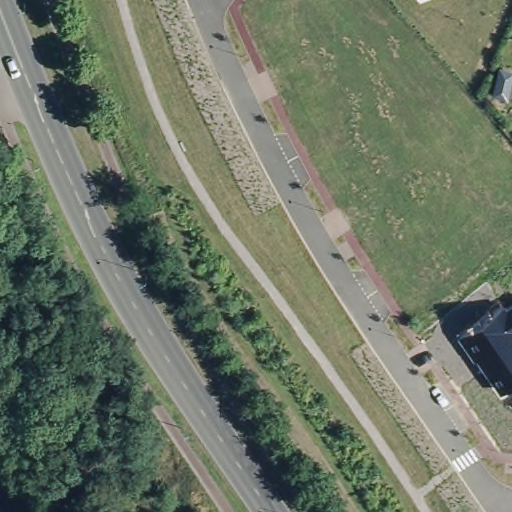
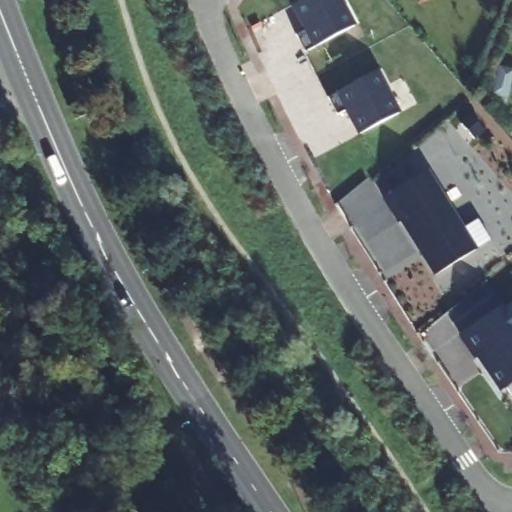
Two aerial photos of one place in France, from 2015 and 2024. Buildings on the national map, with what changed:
new [(290,7),(303,0),(341,0),(355,24),(306,51),(297,35),(302,32),(290,7)]
new [(345,110),(337,114),(329,97),(336,94),(377,71),(400,112),(357,134),(345,110)]
new [(426,171),(476,250),(435,275),(402,222),(399,223),(383,199),(426,171)]
unchanged [(500,392),(476,358),(474,360),(457,336),(502,303),(505,307),(512,302),(512,383),(500,392)]

